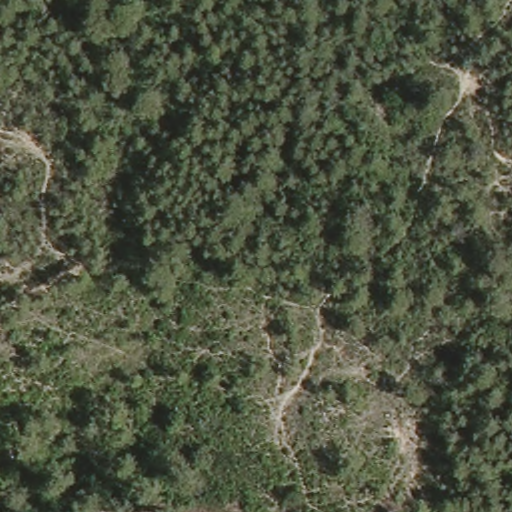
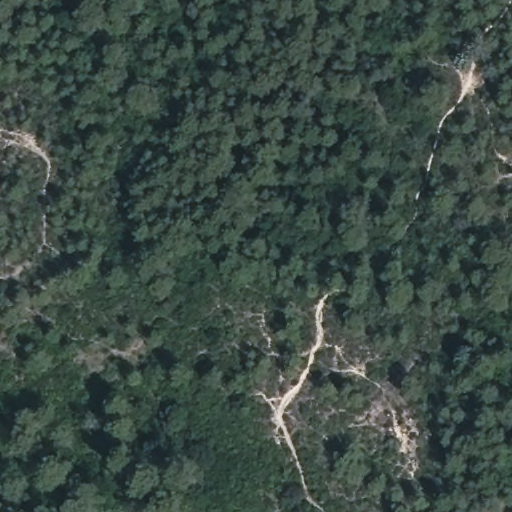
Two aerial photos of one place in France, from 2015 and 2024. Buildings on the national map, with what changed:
[]

